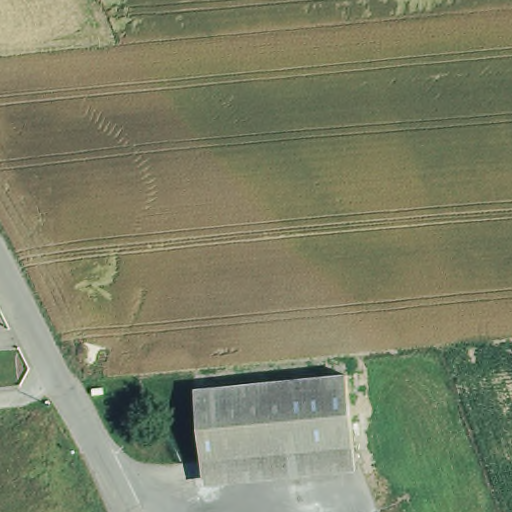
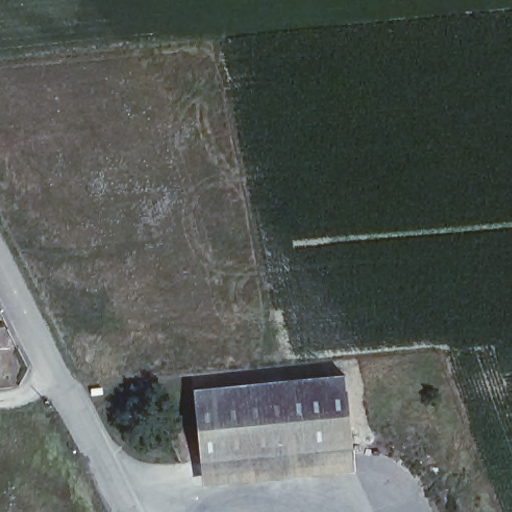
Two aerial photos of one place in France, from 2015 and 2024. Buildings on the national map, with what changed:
unchanged [(195,383),(347,368),(355,446),(205,462),(195,383)]
unchanged [(355,446),(357,464),(207,479),(205,462),(355,446)]

